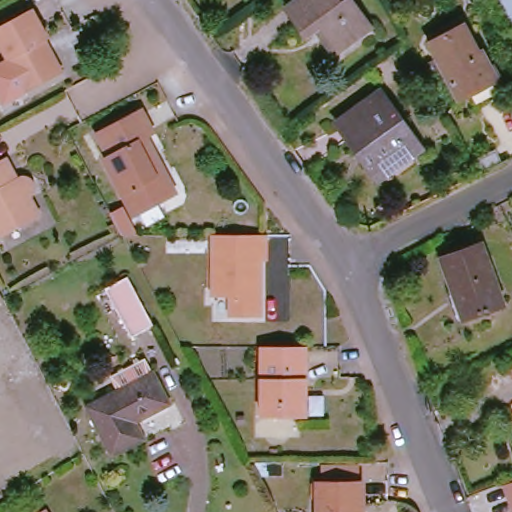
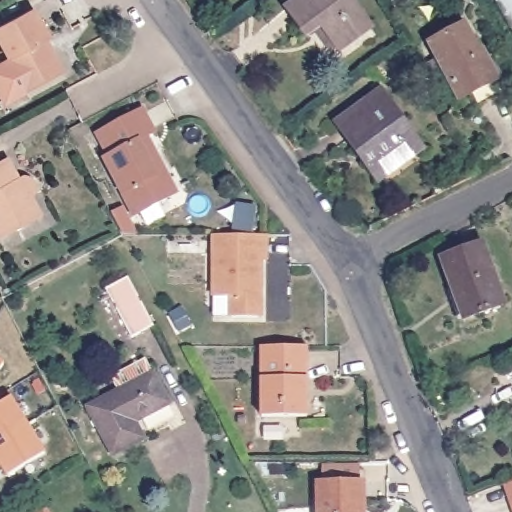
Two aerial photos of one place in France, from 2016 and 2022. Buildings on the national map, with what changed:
unchanged [(320,34),(312,40),(292,13),(309,0),(341,0),(345,6),(354,0),(377,31),(344,55),(342,51),(336,55),(320,34)]
unchanged [(501,0),(512,0),(512,21),(501,0)]
unchanged [(0,73),(14,65),(0,41),(0,35),(37,14),(54,44),(48,47),(52,55),(56,56),(67,77),(31,97),(9,109),(0,93),(0,73)]
unchanged [(474,29),(489,58),(492,56),(507,85),(470,105),(454,74),(443,80),(437,69),(447,63),(440,48),(474,29)]
unchanged [(364,159),(341,127),(387,95),(427,153),(391,178),(382,185),(364,159)]
unchanged [(170,197),(134,216),(104,158),(108,156),(96,133),(142,109),(155,132),(145,138),(154,154),(155,153),(165,172),(177,193),(170,197)]
unchanged [(34,176),(35,176),(36,177),(37,178),(39,179),(39,180),(40,181),(40,182),(41,184),(42,185),(42,187),(41,188),(41,190),(40,191),(40,192),(39,194),(38,195),(37,196),(36,196),(35,197),(45,216),(5,237),(0,229),(0,163),(4,161),(12,156),(24,177),(29,175),(30,175),(32,175),(34,176)]
unchanged [(219,240),(271,240),(271,265),(266,265),(266,305),(262,305),(262,321),(235,321),(235,301),(218,301),(219,240)]
unchanged [(469,324),(447,263),(487,248),(509,310),(469,324)]
unchanged [(110,289),(133,277),(159,325),(137,337),(110,289)]
unchanged [(262,417),(262,346),(307,346),(307,417),(262,417)]
new [(0,369),(0,360),(4,363),(0,369)]
unchanged [(174,403),(140,421),(149,439),(118,455),(92,407),(157,372),(174,403)]
new [(46,453),(7,476),(0,465),(0,403),(11,396),(46,453)]
unchanged [(512,486),(512,491),(510,486),(512,486)]
unchanged [(367,488),(368,512),(324,512),(324,488),(367,488)]

